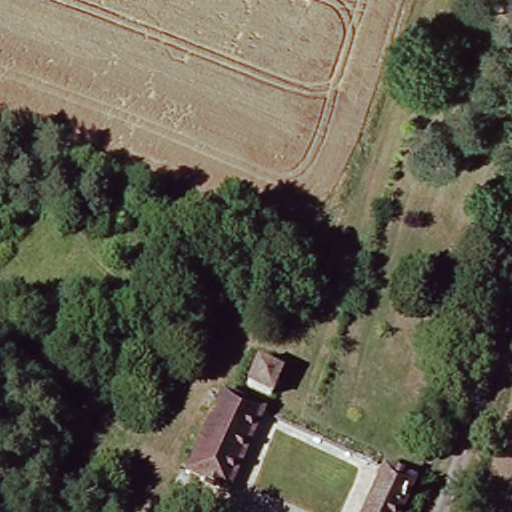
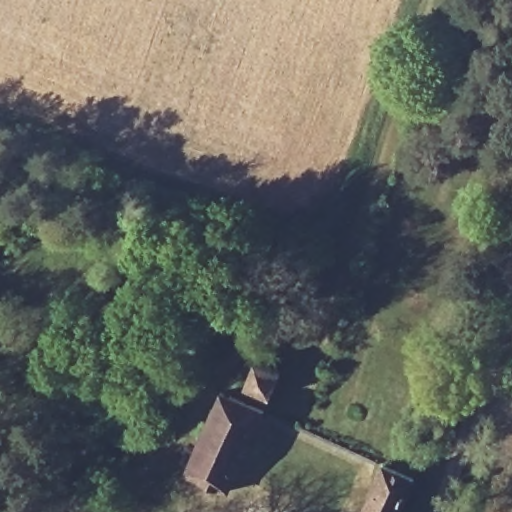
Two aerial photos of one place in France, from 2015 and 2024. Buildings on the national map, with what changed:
unchanged [(278,368),(267,395),(240,384),(252,356),(278,368)]
unchanged [(222,400),(266,418),(231,498),(189,479),(222,400)]
unchanged [(417,481),(403,512),(366,512),(386,468),(417,481)]

